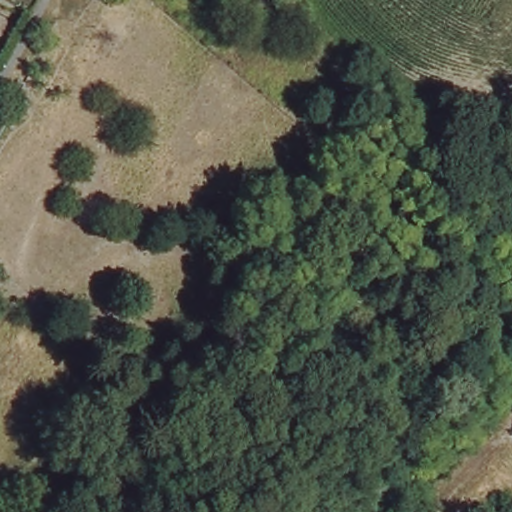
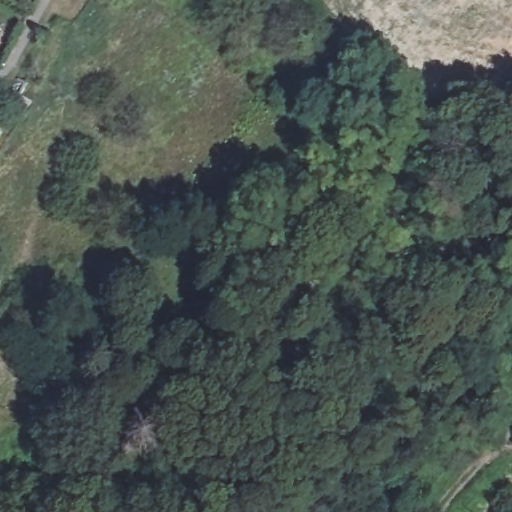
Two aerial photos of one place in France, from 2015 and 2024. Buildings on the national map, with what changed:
[]

